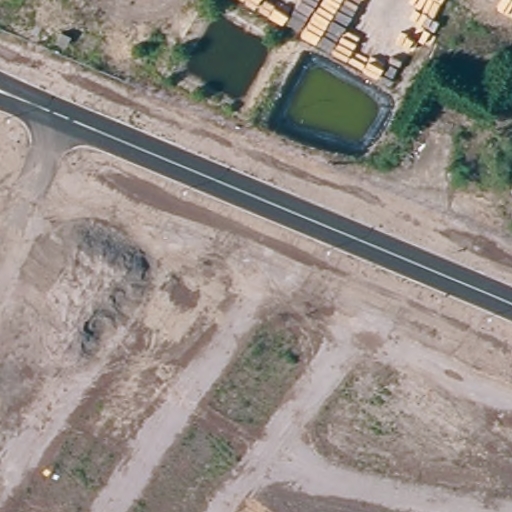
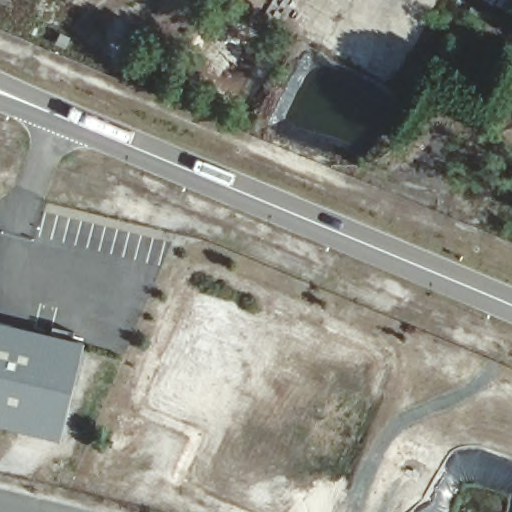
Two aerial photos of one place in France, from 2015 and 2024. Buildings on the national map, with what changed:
new [(85,341),(59,439),(0,424),(0,320),(85,341)]

